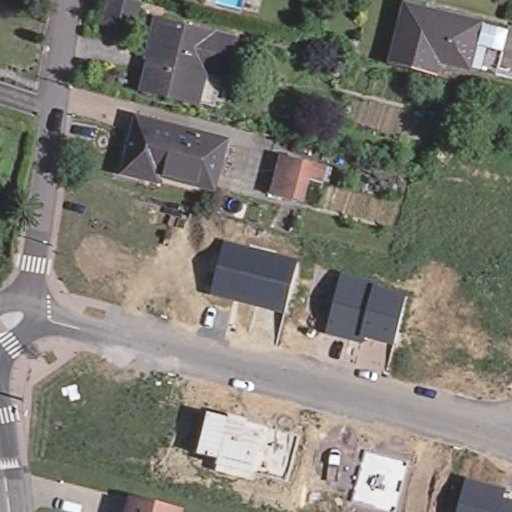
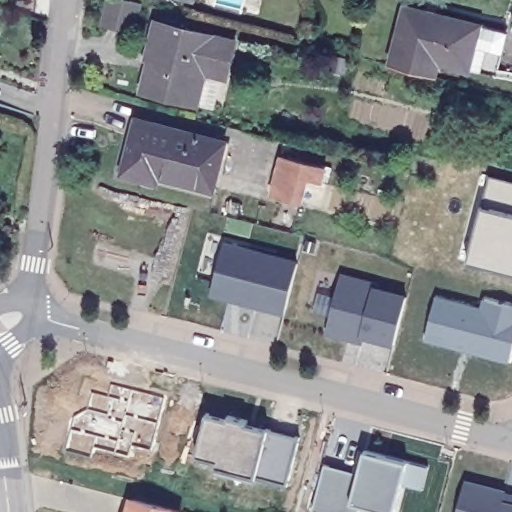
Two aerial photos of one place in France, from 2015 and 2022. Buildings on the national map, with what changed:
unchanged [(131,0),(125,28),(96,20),(101,0),(131,0)]
unchanged [(464,61),(433,54),(430,68),(386,57),(397,17),(401,0),(407,0),(475,17),(500,24),(496,42),(495,46),(469,40),(464,61)]
unchanged [(156,19),(235,37),(228,63),(226,74),(203,68),(195,100),(143,87),(151,55),(147,54),(150,44),(156,19)]
unchanged [(136,114),(216,135),(225,137),(222,151),(217,170),(207,169),(205,177),(203,182),(214,185),(213,186),(147,170),(145,175),(122,169),(125,157),(132,129),(136,114)]
unchanged [(322,180),(308,176),(302,200),(270,191),(277,166),(282,152),(326,163),(322,177),(322,180)]
new [(490,172),(512,178),(512,274),(465,263),(477,222),(490,172)]
unchanged [(212,293),(225,243),(297,261),(283,313),(212,293)]
unchanged [(326,332),(341,273),(377,283),(375,286),(405,293),(393,345),(365,338),(363,343),(326,332)]
new [(480,310),(483,300),(512,308),(512,353),(508,367),(425,341),(435,297),(480,310)]
new [(165,398),(152,452),(130,448),(127,460),(92,449),(90,458),(65,451),(74,415),(87,408),(91,390),(108,395),(110,383),(165,398)]
unchanged [(255,473),(253,480),(217,471),(217,463),(219,457),(198,453),(208,412),(228,418),(230,414),(248,418),(247,422),(268,429),(298,436),(287,481),(255,473)]
unchanged [(363,505),(362,512),(311,512),(308,511),(325,462),(358,474),(365,452),(405,463),(406,463),(393,511),(363,505)]
unchanged [(467,480),(507,490),(505,500),(512,502),(512,512),(459,512),(467,480)]
unchanged [(128,492),(177,505),(175,512),(123,512),(128,492)]

